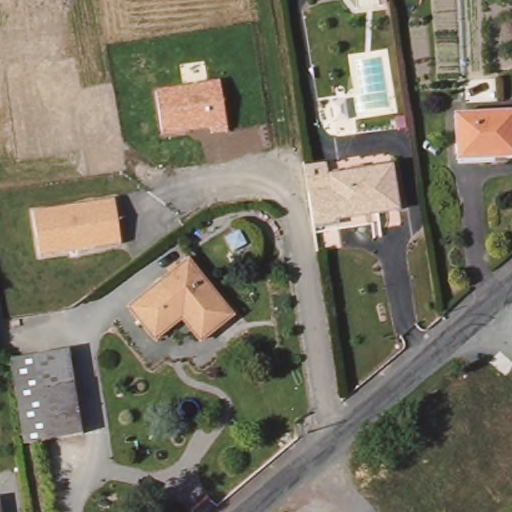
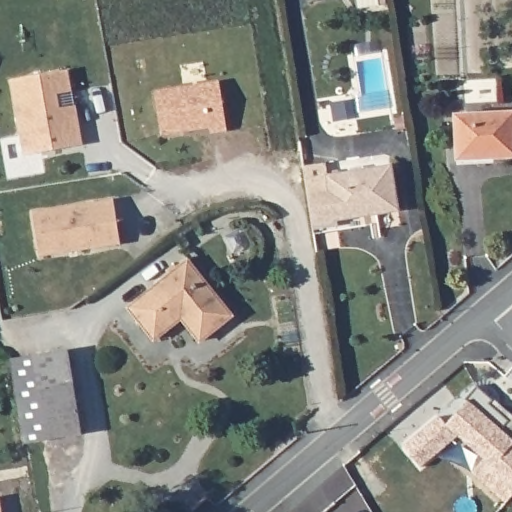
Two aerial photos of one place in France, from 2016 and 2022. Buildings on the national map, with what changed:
unchanged [(342,0),(366,0),(343,4),(342,0)]
new [(70,70),(84,144),(23,154),(11,80),(70,70)]
unchanged [(210,135),(209,130),(162,135),(155,90),(220,81),(229,133),(210,135)]
unchanged [(453,115),(512,109),(512,157),(457,161),(453,115)]
unchanged [(322,188),(320,175),(387,166),(392,211),(332,217),(332,228),(314,231),(308,190),(322,188)]
unchanged [(122,244),(40,256),(34,213),(114,200),(122,244)]
unchanged [(232,321),(201,346),(182,323),(155,345),(129,313),(188,266),(232,321)]
unchanged [(71,360),(87,437),(28,449),(13,361),(10,362),(10,360),(69,350),(70,360),(71,360)]
new [(467,401),(466,400),(477,386),(492,399),(493,398),(512,415),(512,497),(507,503),(472,473),(485,460),(458,436),(421,467),(404,447),(440,416),(447,425),(467,401)]

